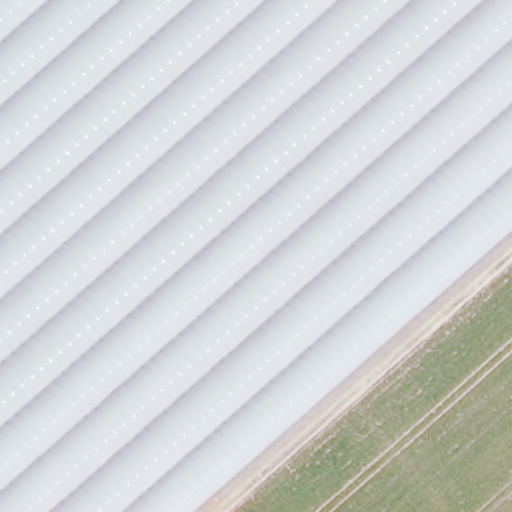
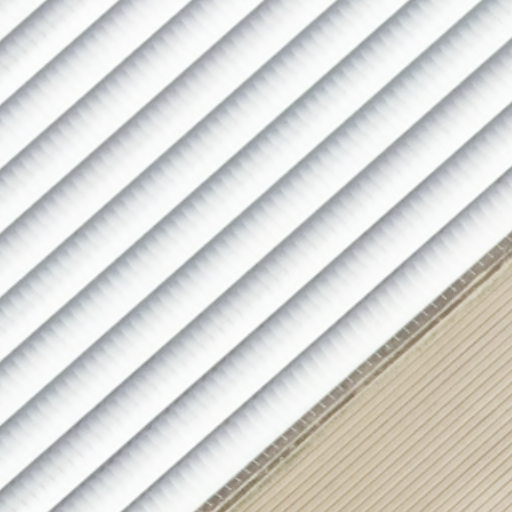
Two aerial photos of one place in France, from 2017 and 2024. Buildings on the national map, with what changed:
unchanged [(512,228),(190,512),(0,512),(0,0),(512,0),(512,228)]

